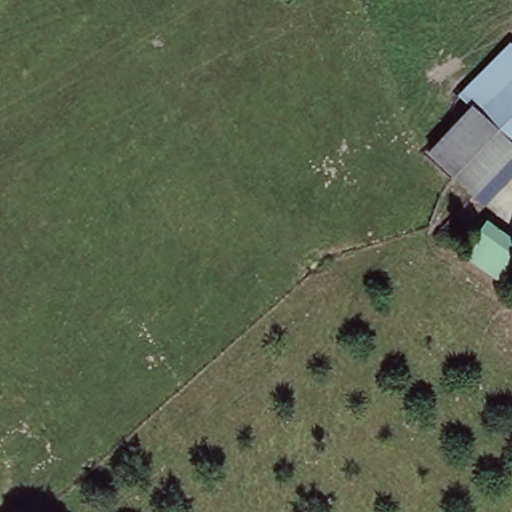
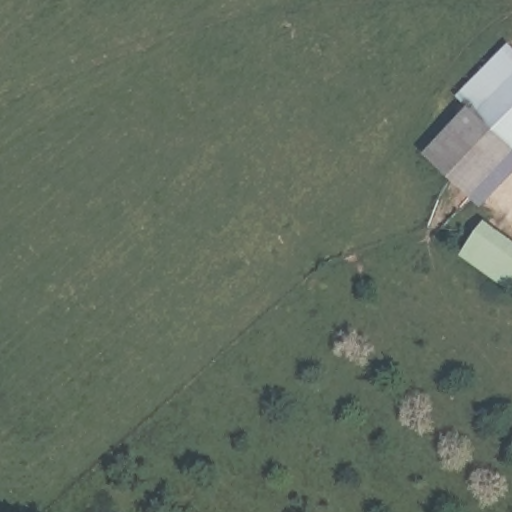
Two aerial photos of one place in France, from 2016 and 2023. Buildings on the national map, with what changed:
unchanged [(461,94),(508,43),(512,47),(512,76),(483,107),(480,111),(473,105),(461,94)]
unchanged [(480,111),(483,107),(512,76),(512,141),(480,111)]
unchanged [(480,111),(512,141),(512,174),(483,205),(427,153),(473,105),(480,111)]
unchanged [(512,245),(512,289),(507,295),(460,263),(485,228),(512,245)]

